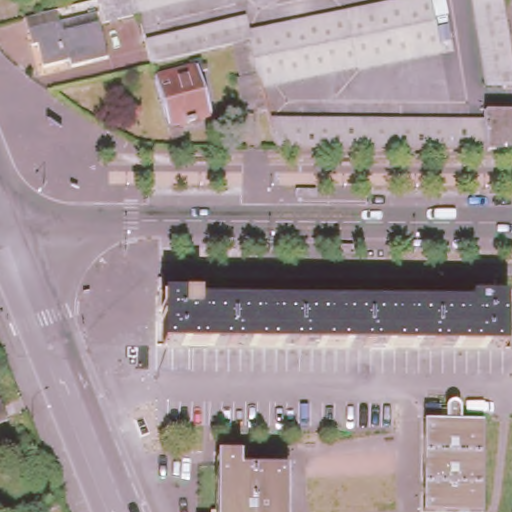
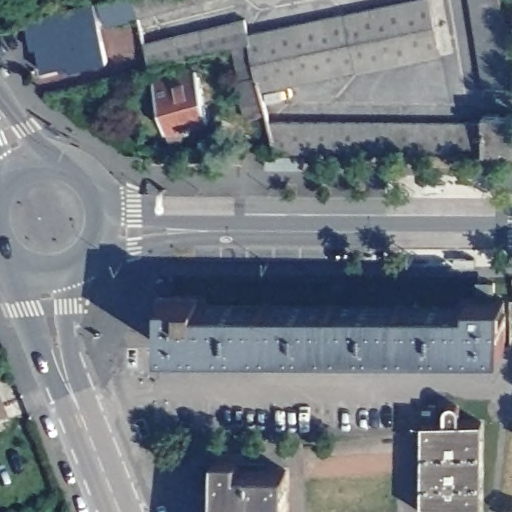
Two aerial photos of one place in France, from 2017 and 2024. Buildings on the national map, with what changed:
unchanged [(99,0),(190,0),(135,15),(136,15),(103,24),(97,0),(99,0)]
unchanged [(349,11),(399,0),(433,0),(443,52),(375,66),(369,36),(355,39),(349,11)]
unchanged [(508,47),(512,74),(512,92),(485,92),(469,0),(500,0),(508,47)]
unchanged [(236,46),(211,51),(205,28),(251,17),(253,31),(349,11),(355,39),(369,36),(375,66),(361,70),(361,67),(265,87),(271,114),(250,119),(241,81),(244,80),(236,46)]
unchanged [(70,67),(69,62),(41,69),(36,47),(31,49),(26,33),(58,25),(95,15),(97,23),(106,59),(70,67)]
unchanged [(148,42),(205,28),(211,51),(154,65),(148,42)]
unchanged [(175,140),(172,130),(159,80),(195,70),(193,64),(204,61),(206,67),(209,67),(211,74),(203,76),(213,118),(201,121),(202,124),(198,125),(197,122),(189,125),(190,126),(184,127),(186,136),(175,140)]
unchanged [(489,120),(490,112),(512,113),(512,152),(335,150),(334,120),(489,120)]
unchanged [(279,150),(272,120),(334,120),(335,150),(279,150)]
unchanged [(332,298),(341,297),(341,301),(401,301),(401,298),(410,298),(409,301),(464,302),(465,294),(508,295),(507,345),(166,341),(166,309),(161,309),(162,292),(208,292),(208,300),(264,300),(264,296),(272,297),(271,300),(332,301),(332,298)]
unchanged [(8,422),(0,425),(0,402),(8,422)]
unchanged [(444,408),(447,406),(450,405),(454,405),(457,408),(458,411),(458,423),(480,424),(479,512),(422,512),(422,423),(444,423),(444,408)]
unchanged [(238,456),(237,468),(285,470),(284,512),(213,512),(214,456),(238,456)]

